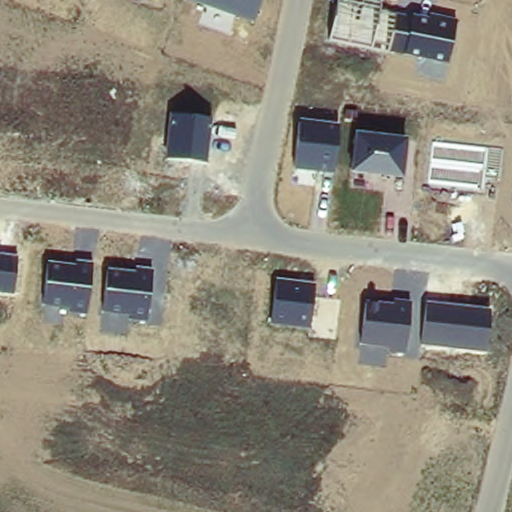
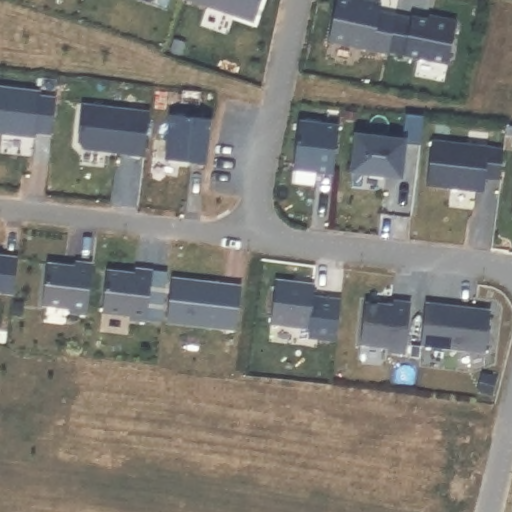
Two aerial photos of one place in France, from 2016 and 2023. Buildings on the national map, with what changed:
unchanged [(261,0),(254,23),(192,0),(261,0)]
unchanged [(337,0),(351,4),(351,0),(364,0),(381,4),(379,13),(409,20),(410,15),(429,20),(429,16),(456,22),(448,65),(329,39),(337,0)]
new [(36,130),(36,135),(0,130),(0,86),(41,90),(41,95),(57,96),(53,132),(36,130)]
new [(145,155),(129,152),(129,151),(84,145),(79,140),(83,103),(150,111),(145,155)]
unchanged [(171,115),(211,119),(208,165),(166,160),(171,115)]
unchanged [(299,121),(338,125),(333,174),(294,170),(299,121)]
unchanged [(355,131),(407,138),(403,178),(351,173),(355,131)]
new [(501,179),(487,177),(485,190),(429,184),(434,141),(504,149),(501,179)]
unchanged [(19,260),(15,295),(0,293),(0,257),(3,257),(19,260)]
unchanged [(49,263),(75,266),(76,262),(93,265),(88,311),(43,305),(49,263)]
unchanged [(106,271),(135,275),(135,269),(153,271),(148,317),(102,312),(106,271)]
new [(237,329),(167,320),(172,277),(242,285),(237,329)]
unchanged [(274,279),(314,284),(310,326),(270,323),(274,279)]
unchanged [(366,301),(408,306),(404,353),(387,353),(387,347),(361,345),(366,301)]
unchanged [(427,303),(492,311),(486,351),(423,345),(427,303)]

